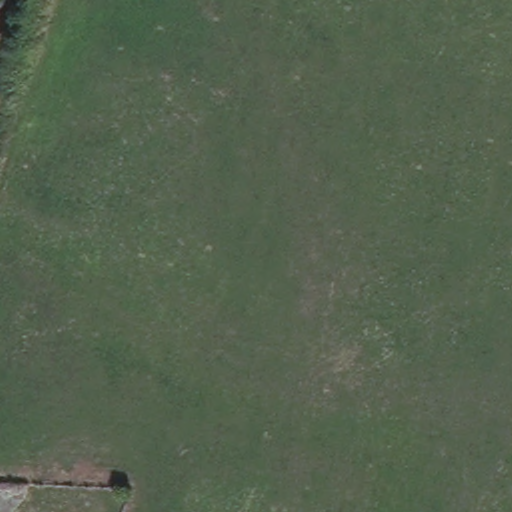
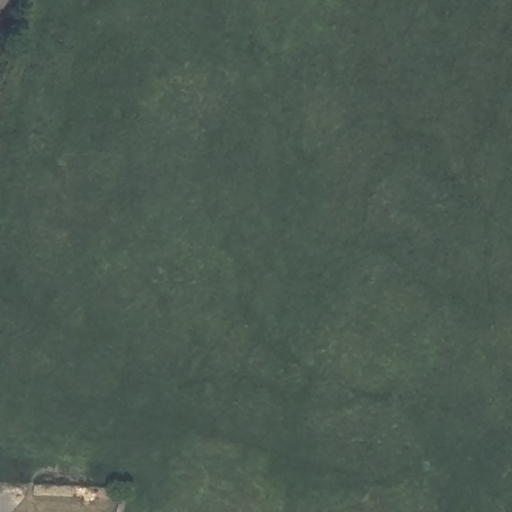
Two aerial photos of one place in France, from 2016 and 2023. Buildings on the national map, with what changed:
[]

